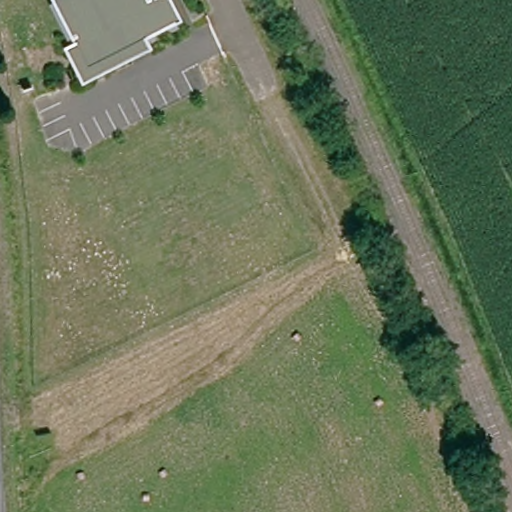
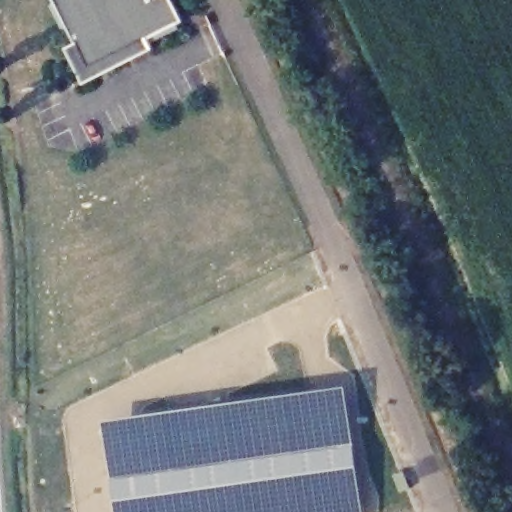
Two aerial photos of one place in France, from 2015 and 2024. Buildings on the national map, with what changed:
unchanged [(65,50),(71,46),(49,3),(55,0),(170,0),(182,24),(146,40),(150,51),(83,85),(65,50)]
new [(346,385),(362,512),(115,512),(102,421),(157,411),(346,385)]

